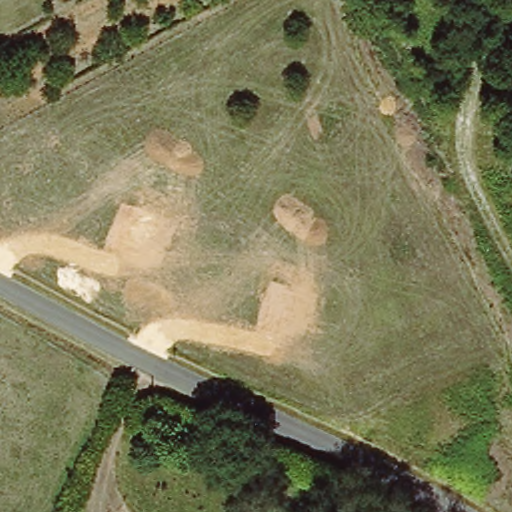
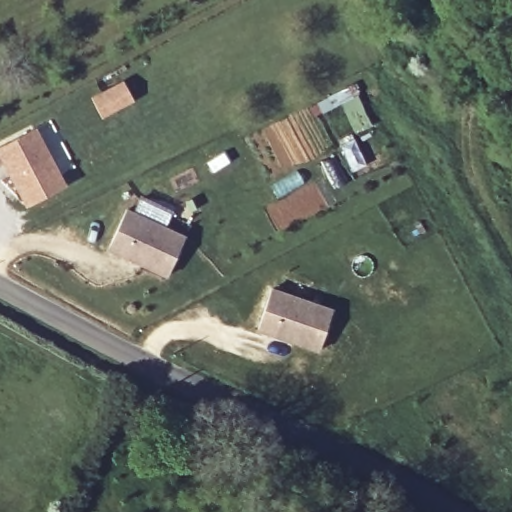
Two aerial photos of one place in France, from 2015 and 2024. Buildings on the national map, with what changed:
new [(0,146),(37,127),(67,184),(27,203),(0,153),(0,146)]
new [(187,235),(168,278),(106,251),(126,207),(187,235)]
new [(334,308),(319,351),(257,330),(272,287),(334,308)]

